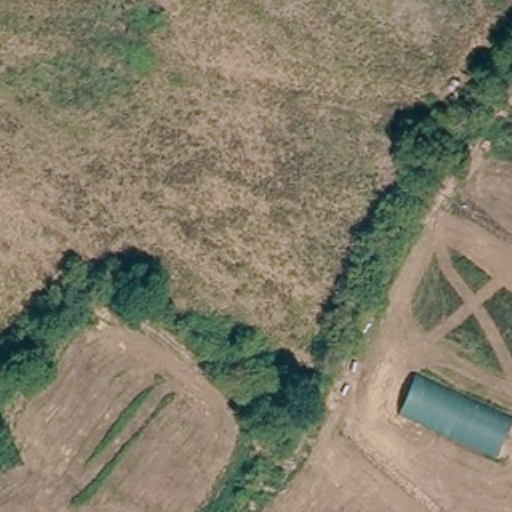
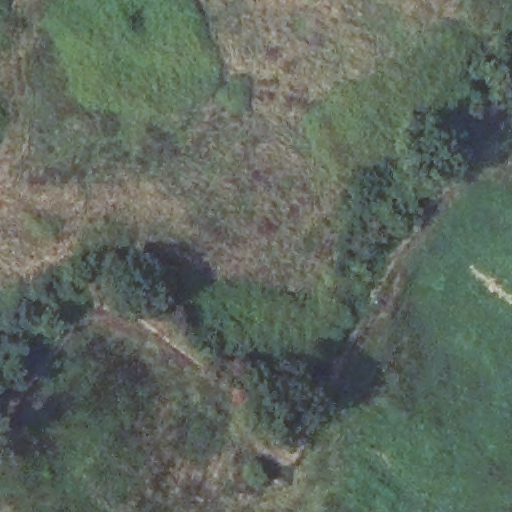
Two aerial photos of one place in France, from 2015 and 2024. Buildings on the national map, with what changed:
demolished [(512,413),(512,429),(501,457),(403,412),(417,369),(512,413)]

